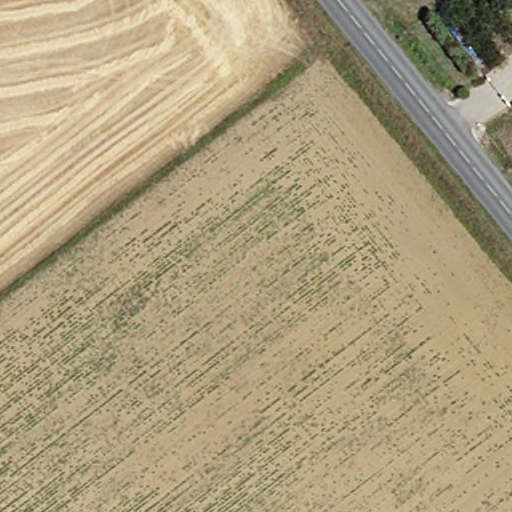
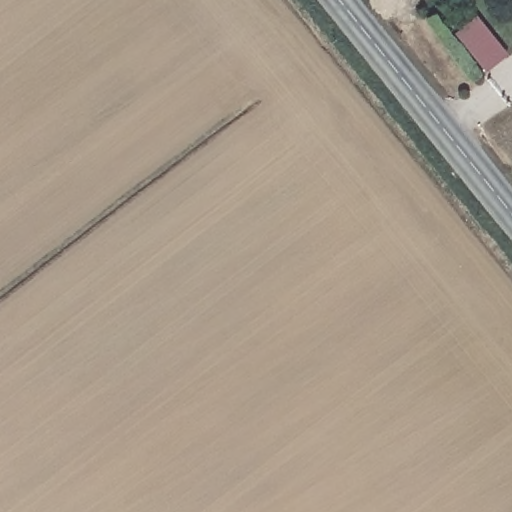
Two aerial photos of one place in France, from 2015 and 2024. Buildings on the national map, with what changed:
new [(508,55),(486,74),(455,35),(477,16),(508,55)]

